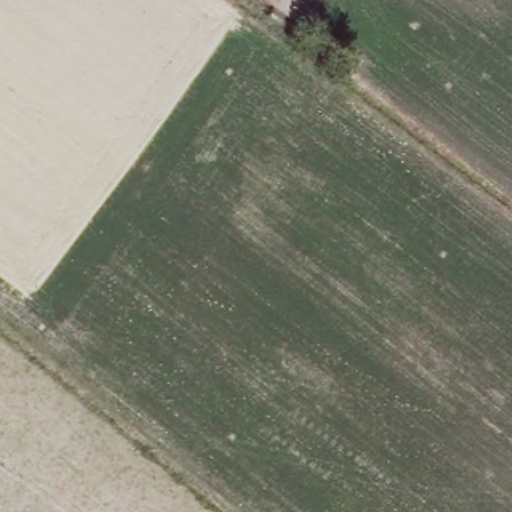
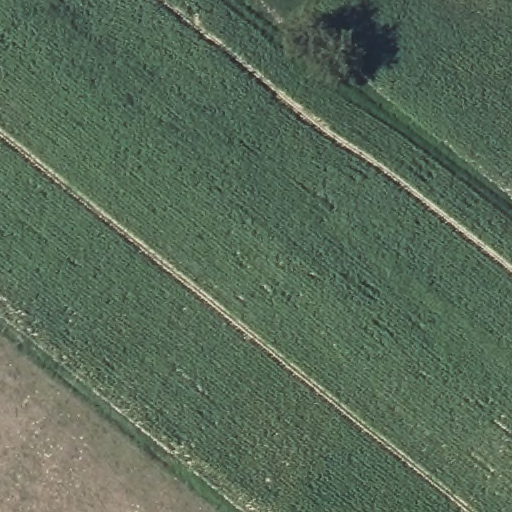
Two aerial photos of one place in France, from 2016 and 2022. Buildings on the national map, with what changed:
unchanged [(257,0),(299,0),(286,20),(257,0)]

